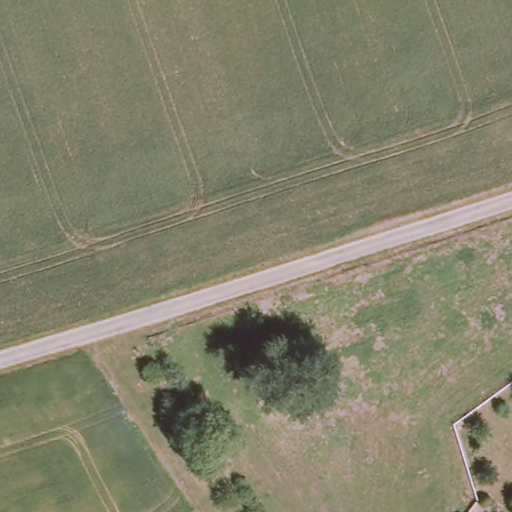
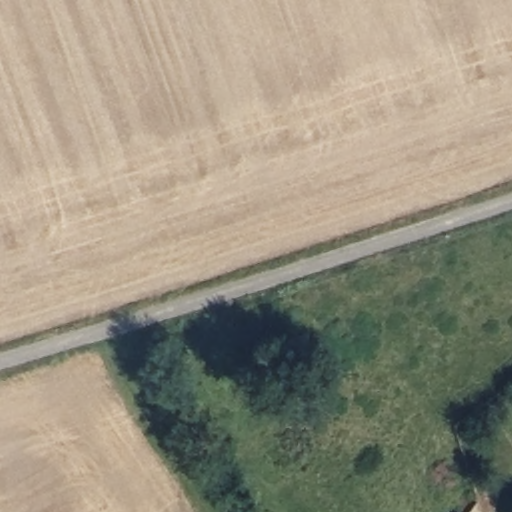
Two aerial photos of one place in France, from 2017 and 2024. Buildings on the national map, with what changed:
[]

